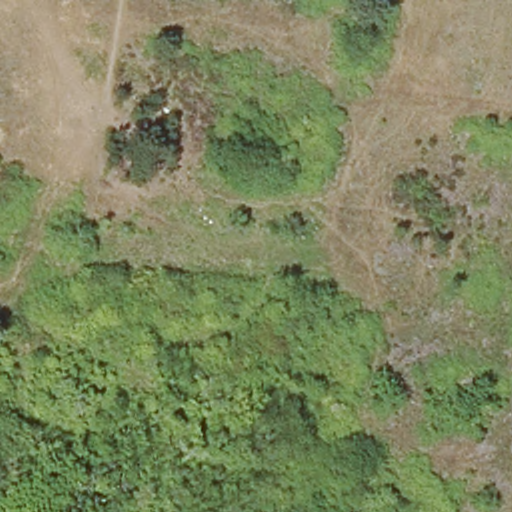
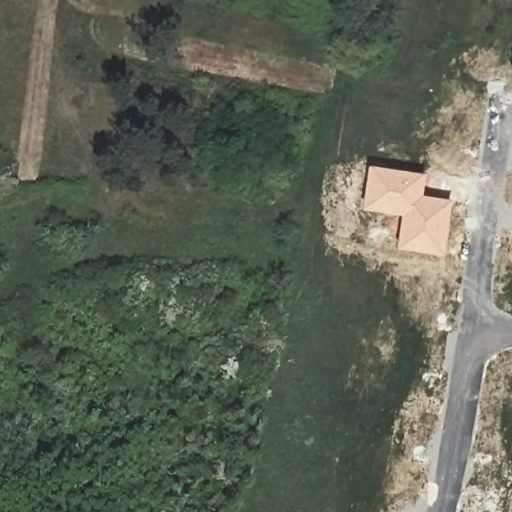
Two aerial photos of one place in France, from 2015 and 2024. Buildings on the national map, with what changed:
new [(402,215),(363,209),(369,165),(426,173),(423,195),(452,199),(444,255),(398,248),(402,215)]

